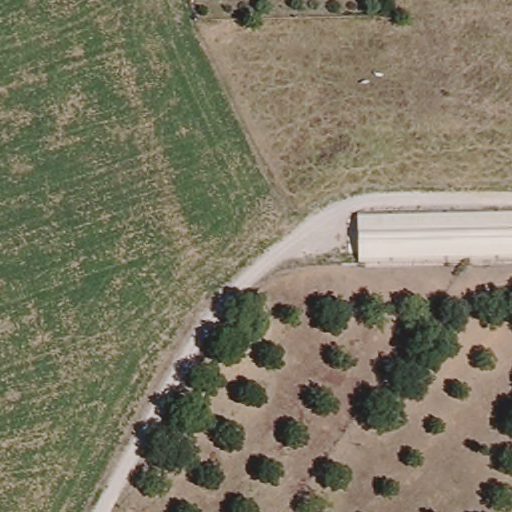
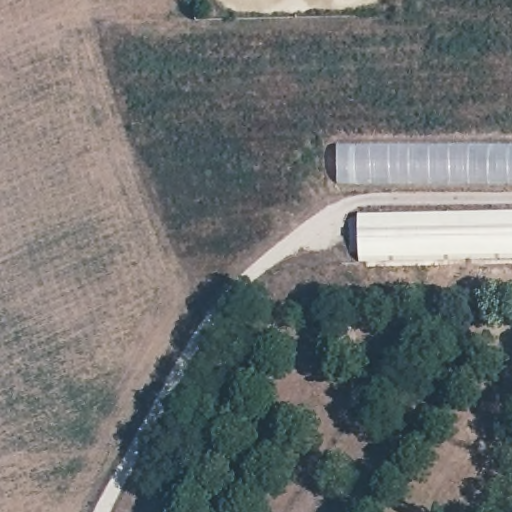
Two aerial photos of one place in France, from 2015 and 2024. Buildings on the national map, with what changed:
new [(337,185),(337,144),(512,145),(512,186),(337,185)]
unchanged [(512,215),(512,264),(358,268),(357,220),(512,215)]

